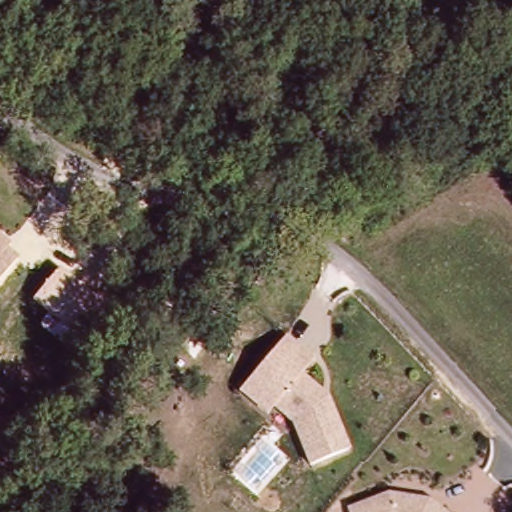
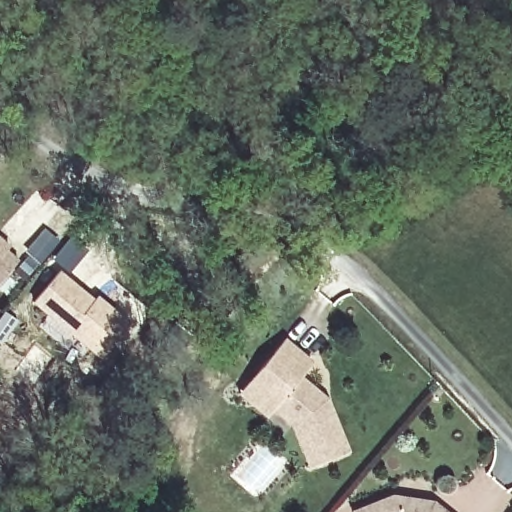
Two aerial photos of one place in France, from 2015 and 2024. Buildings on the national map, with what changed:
unchanged [(14,248),(10,252),(20,262),(0,285),(0,236),(14,248)]
new [(69,286),(91,304),(95,300),(126,326),(98,360),(32,303),(56,275),(69,286)]
new [(194,324),(209,336),(187,365),(172,353),(194,324)]
unchanged [(311,363),(300,378),(318,392),(327,400),(347,453),(310,467),(293,424),(273,408),(267,416),(240,393),(258,371),(284,340),(311,363)]
unchanged [(352,507),(391,491),(433,498),(444,507),(450,512),(354,512),(352,507)]

